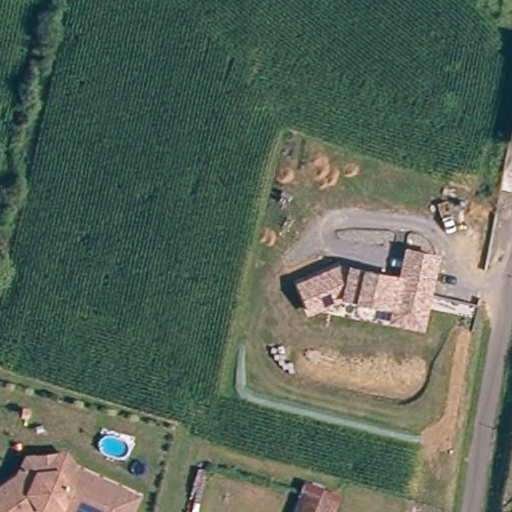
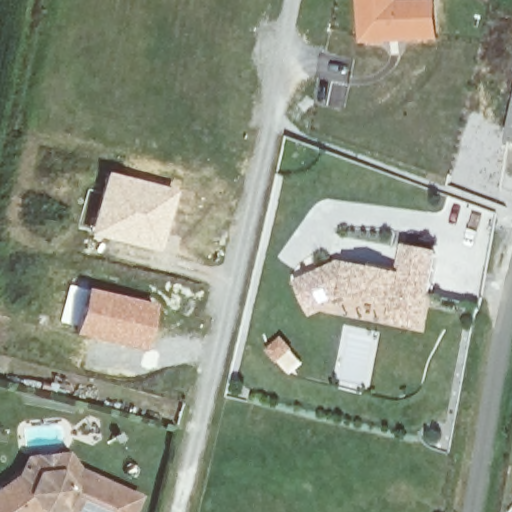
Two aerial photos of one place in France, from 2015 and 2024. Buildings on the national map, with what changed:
new [(401,0),(413,0),(437,0),(438,41),(362,45),(358,0),(401,0)]
unchanged [(512,137),(512,143),(511,142),(512,137)]
new [(105,169),(176,187),(159,250),(89,233),(105,169)]
unchanged [(427,331),(391,324),(395,309),(346,298),(311,315),(297,283),(347,263),(401,273),(408,246),(443,253),(427,331)]
new [(69,284),(155,302),(143,350),(75,333),(83,297),(78,296),(74,312),(65,310),(69,284)]
unchanged [(45,503),(32,512),(31,512),(29,510),(26,512),(0,512),(0,482),(20,467),(26,450),(66,445),(77,461),(137,486),(127,512),(96,512),(77,504),(76,508),(62,501),(45,503)]
demolished [(294,512),(304,481),(344,495),(338,512),(294,512)]

